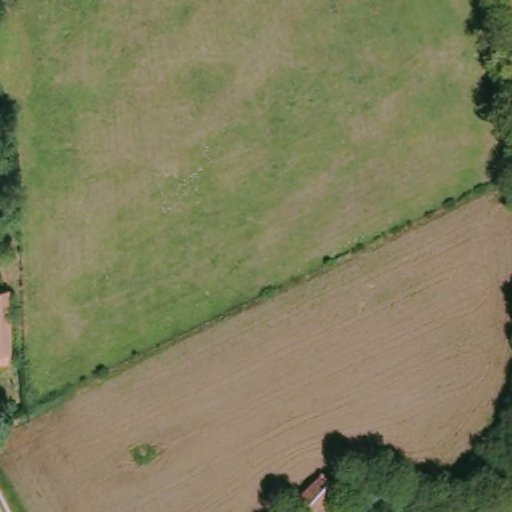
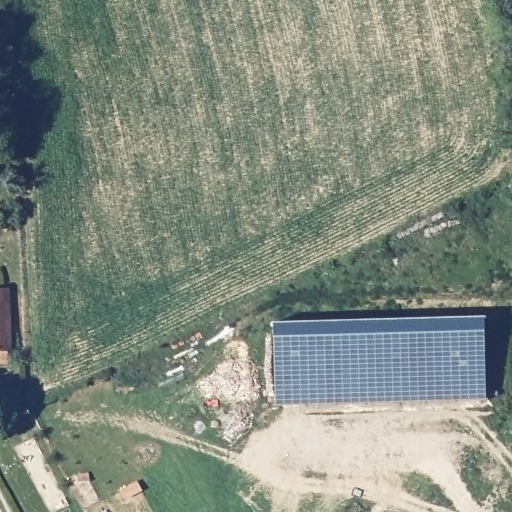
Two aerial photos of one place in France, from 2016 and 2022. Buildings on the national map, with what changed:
unchanged [(0,365),(0,291),(5,291),(7,365),(0,365)]
new [(272,325),(483,318),(486,401),(275,406),(272,325)]
demolished [(397,491),(393,512),(368,512),(343,505),(338,512),(289,512),(297,502),(302,506),(324,481),(333,488),(340,480),(350,479),(397,491)]
new [(140,482),(144,497),(130,501),(125,486),(140,482)]
demolished [(500,512),(462,512),(497,502),(500,512)]

